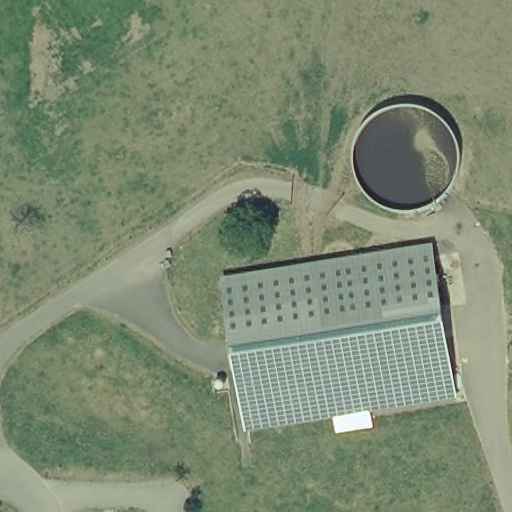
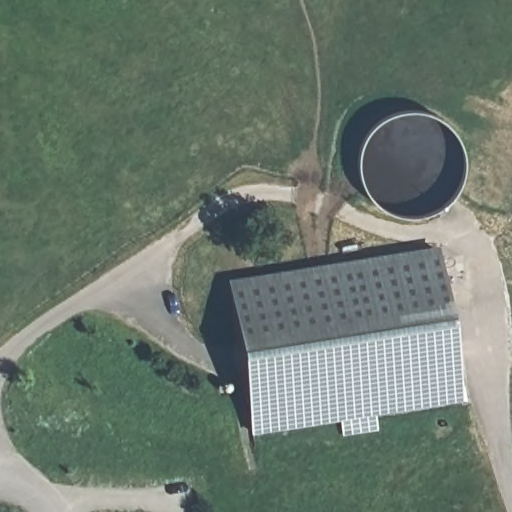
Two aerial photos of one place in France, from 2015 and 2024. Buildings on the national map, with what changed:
unchanged [(463,400),(376,414),(379,430),(342,435),(340,421),(253,435),(231,280),(441,246),(463,400)]

